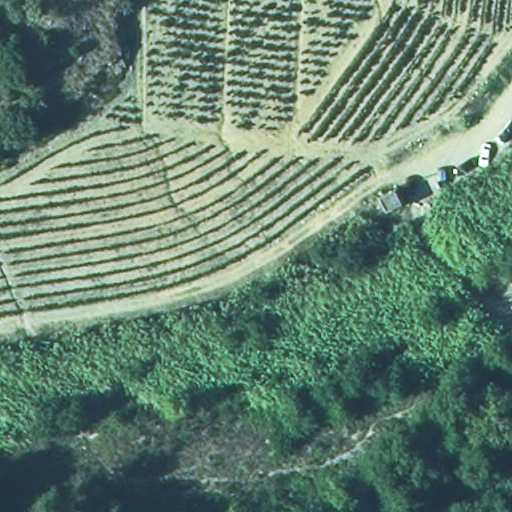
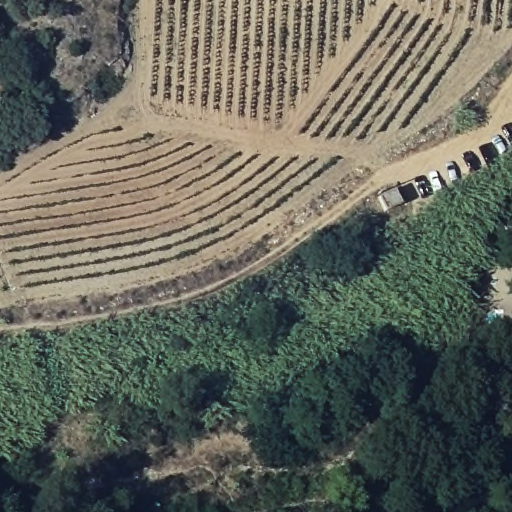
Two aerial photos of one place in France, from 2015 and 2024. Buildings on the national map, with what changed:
unchanged [(398,181),(406,202),(383,212),(373,189),(398,181)]

